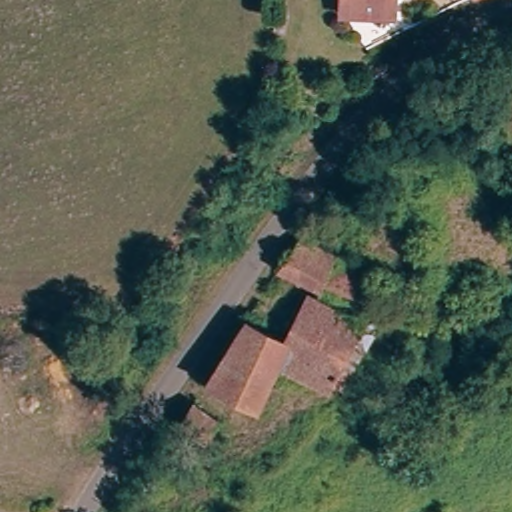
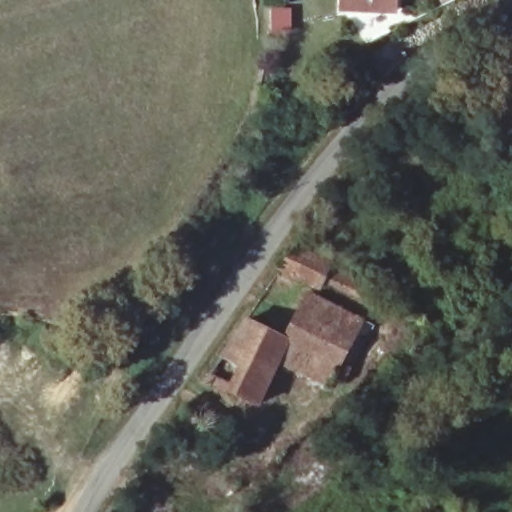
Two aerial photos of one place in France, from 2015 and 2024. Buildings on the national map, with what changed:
unchanged [(345,0),(392,0),(391,10),(375,10),(345,9),(345,0)]
unchanged [(311,246),(342,264),(336,273),(350,282),(351,276),(360,282),(350,300),(330,289),(325,295),(290,277),(311,246)]
unchanged [(315,357),(282,339),(305,294),(338,312),(315,357)]
unchanged [(338,312),(382,334),(366,365),(342,352),(337,362),(342,365),(333,383),(325,379),(317,389),(270,365),(256,392),(237,382),(230,397),(203,385),(244,319),(282,339),(315,357),(338,312)]
unchanged [(166,420),(177,401),(204,415),(193,434),(166,420)]

